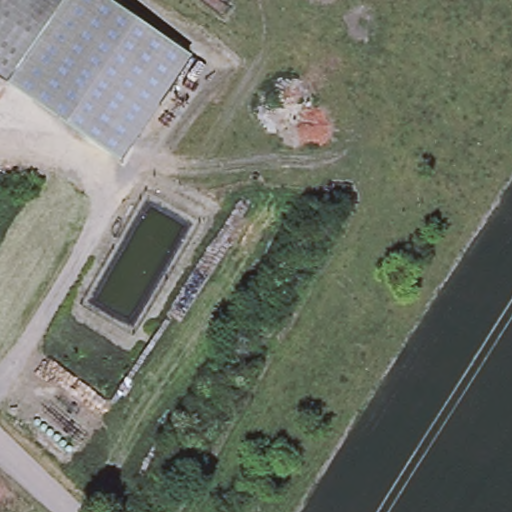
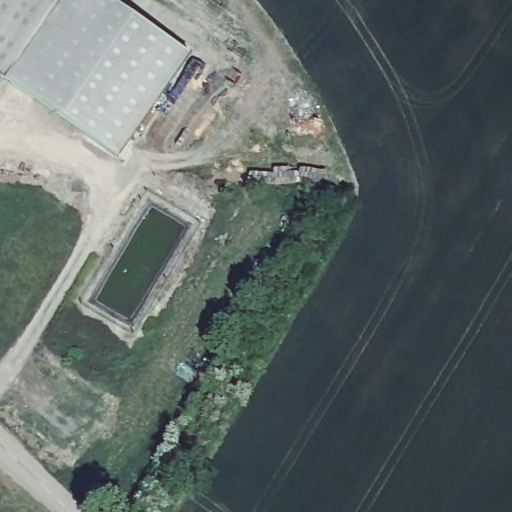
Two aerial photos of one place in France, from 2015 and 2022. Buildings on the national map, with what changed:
unchanged [(0,81),(0,0),(66,0),(6,85),(0,81)]
unchanged [(190,57),(117,162),(6,85),(66,0),(106,0),(190,57)]

